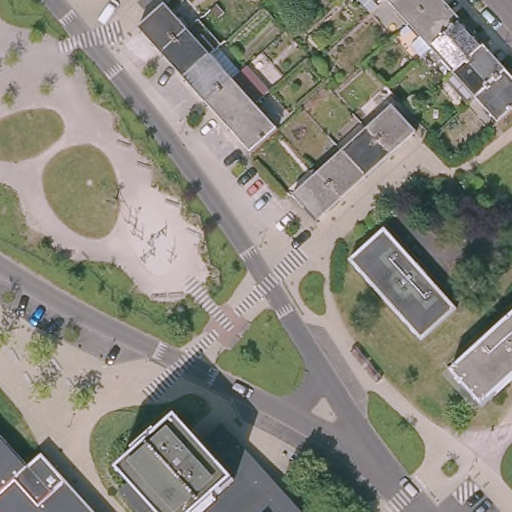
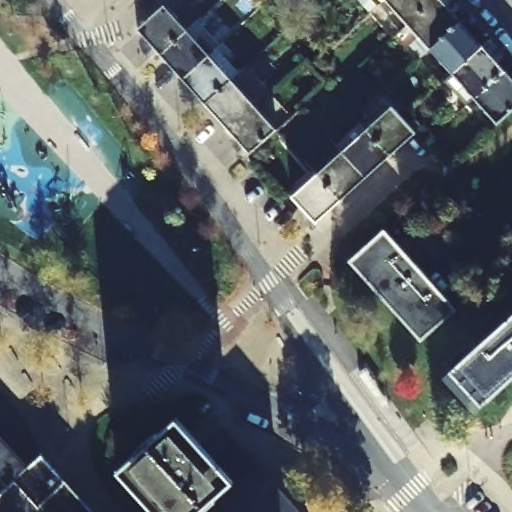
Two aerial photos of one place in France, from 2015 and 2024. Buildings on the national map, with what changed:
unchanged [(389,0),(435,0),(410,22),(389,0)]
unchanged [(442,0),(461,21),(432,47),(410,22),(435,0),(442,0)]
unchanged [(164,52),(140,27),(164,5),(187,30),(164,52)]
unchanged [(455,71),(432,47),(461,21),(483,46),(455,71)]
unchanged [(164,52),(187,30),(210,55),(186,77),(164,52)]
unchanged [(483,46),(505,70),(477,96),(455,71),(483,46)]
unchanged [(186,77),(210,55),(233,80),(209,102),(186,77)]
unchanged [(505,70),(512,78),(512,110),(500,121),(477,96),(505,70)]
unchanged [(231,127),(209,102),(233,80),(255,105),(231,127)]
unchanged [(255,105),(278,129),(254,151),(231,127),(255,105)]
unchanged [(394,106),(416,130),(391,153),(369,129),(394,106)]
unchanged [(344,151),(369,129),(391,153),(366,175),(344,151)]
unchanged [(344,151),(366,175),(342,198),(319,174),(344,151)]
unchanged [(316,221),(294,196),(319,174),(342,198),(316,221)]
unchanged [(454,308),(422,338),(351,260),(384,231),(454,308)]
unchanged [(481,403),(452,371),(480,345),(512,316),(512,376),(481,403)]
unchanged [(124,491),(132,483),(120,470),(177,418),(199,442),(207,451),(212,458),(233,480),(214,498),(226,512),(142,512),(124,491)]
unchanged [(233,480),(212,458),(207,451),(199,442),(220,425),(237,443),(280,491),(299,512),(226,512),(214,498),(233,480)]
unchanged [(42,450),(45,451),(53,461),(61,470),(79,489),(99,512),(0,512),(0,431),(28,461),(42,450)]

